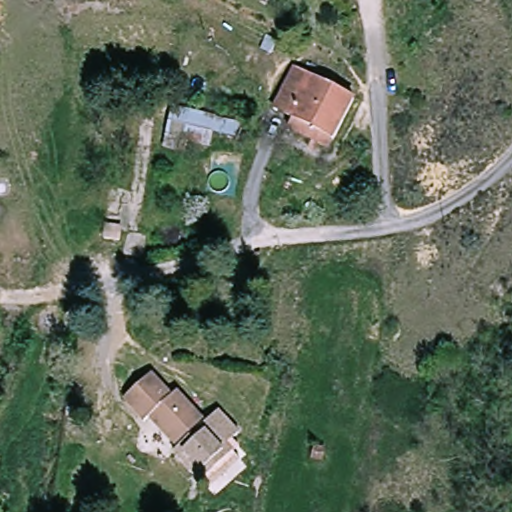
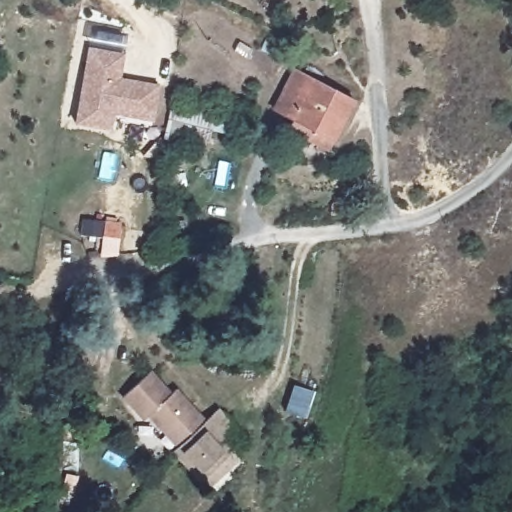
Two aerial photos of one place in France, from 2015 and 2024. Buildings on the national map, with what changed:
new [(116,110),(113,125),(78,119),(92,44),(127,50),(122,75),(161,82),(156,109),(155,116),(116,110)]
unchanged [(288,132),(295,119),(279,111),(297,72),(355,101),(332,153),(288,132)]
unchanged [(164,149),(166,136),(170,105),(210,110),(206,141),(180,138),(178,150),(164,149)]
unchanged [(183,437),(158,407),(147,415),(133,397),(135,386),(155,372),(170,390),(175,386),(204,420),(218,408),(236,430),(224,440),(231,449),(198,477),(173,446),(183,437)]

